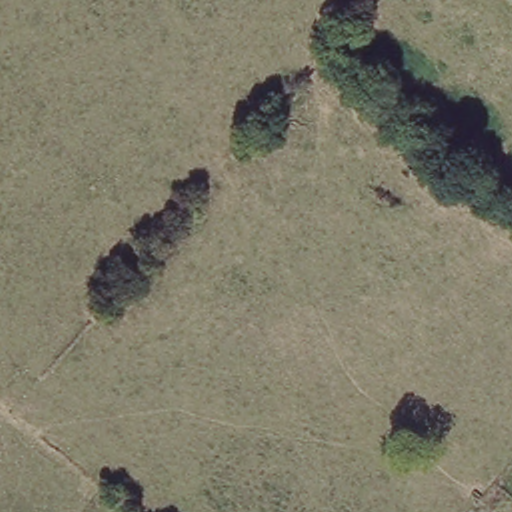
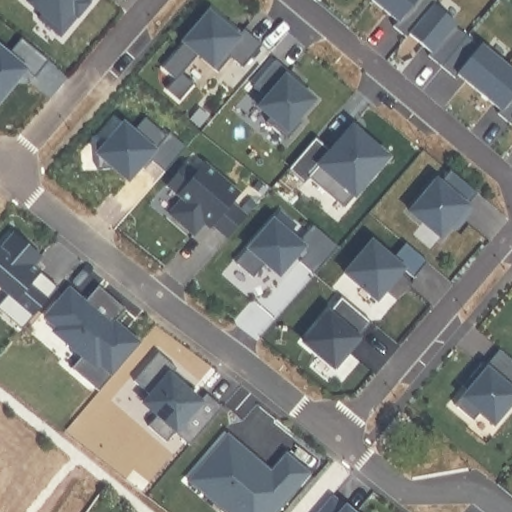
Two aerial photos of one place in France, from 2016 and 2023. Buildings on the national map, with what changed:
new [(24,1),(25,0),(91,0),(59,35),(24,1)]
new [(434,1),(457,20),(455,21),(480,42),(482,40),(512,64),(512,120),(499,108),(500,105),(459,70),(456,74),(429,51),(432,47),(411,30),(408,33),(394,22),(398,16),(376,0),(435,0),(434,1)]
new [(209,13),(241,40),(248,33),(264,46),(244,69),(230,59),(216,75),(199,60),(186,79),(196,87),(182,105),(168,92),(178,81),(162,69),(209,13)]
new [(256,103),(265,92),(252,82),(275,53),(291,68),(287,73),(317,99),(288,131),(256,103)]
new [(109,137),(123,121),(134,130),(145,116),(165,134),(168,131),(185,146),(164,170),(148,155),(127,180),(113,167),(97,168),(95,138),(109,137)]
new [(357,205),(353,202),(345,211),(310,181),(306,185),(290,174),(316,142),(332,157),(354,129),(390,163),(357,205)]
new [(238,192),(231,202),(244,214),(218,243),(201,228),(191,238),(163,214),(177,199),(160,185),(182,161),(193,170),(201,160),(238,192)]
new [(409,218),(446,173),(479,201),(444,245),(409,218)]
new [(278,209),(293,223),(287,230),(298,240),(310,225),(335,246),(312,273),(300,262),(308,252),(303,248),(279,274),(263,260),(251,275),(234,260),(278,209)]
new [(0,312),(0,303),(10,292),(0,284),(0,245),(17,224),(42,244),(20,269),(35,282),(43,272),(59,288),(20,331),(0,312)]
new [(373,245),(395,263),(407,247),(431,263),(417,281),(407,272),(378,306),(346,280),(373,245)]
new [(100,387),(73,364),(84,352),(56,328),(59,323),(48,313),(70,287),(85,299),(100,282),(127,306),(112,322),(122,331),(125,328),(140,340),(100,387)]
new [(303,345),(337,301),(372,329),(337,374),(303,345)]
new [(191,452),(178,442),(175,446),(135,413),(149,396),(133,383),(160,352),(180,369),(174,374),(222,413),(191,452)]
new [(512,365),(512,406),(489,432),(453,404),(497,352),(512,365)]
new [(274,473),(288,455),(311,475),(283,512),(221,512),(188,485),(227,436),(274,473)]
new [(347,512),(325,512),(334,501),(347,512)]

